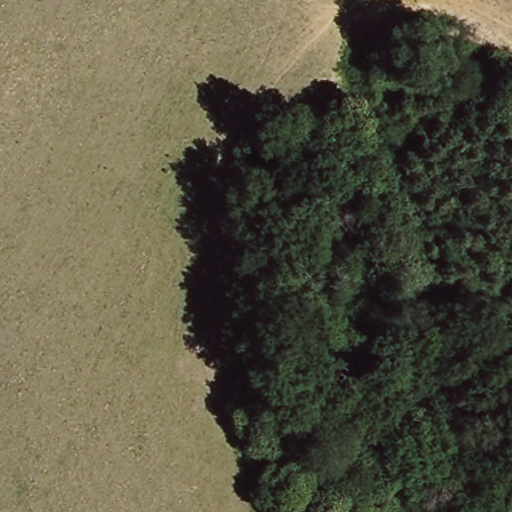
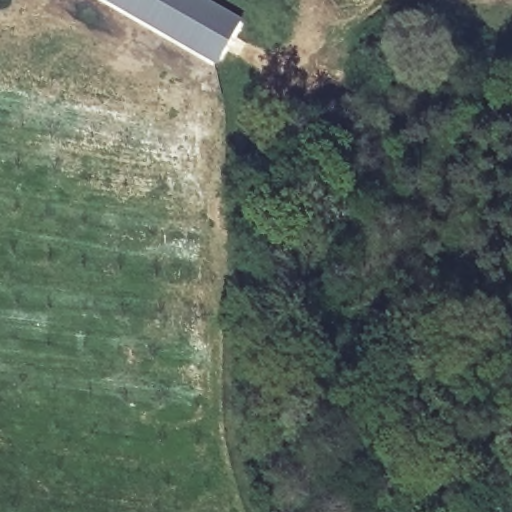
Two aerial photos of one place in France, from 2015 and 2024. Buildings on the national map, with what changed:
new [(243,18),(217,64),(106,0),(212,0),(243,18)]

